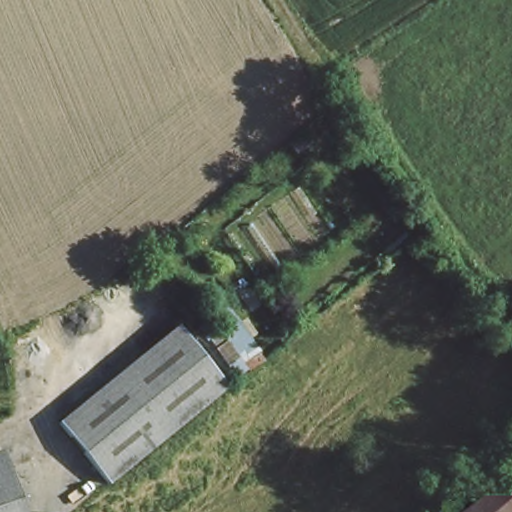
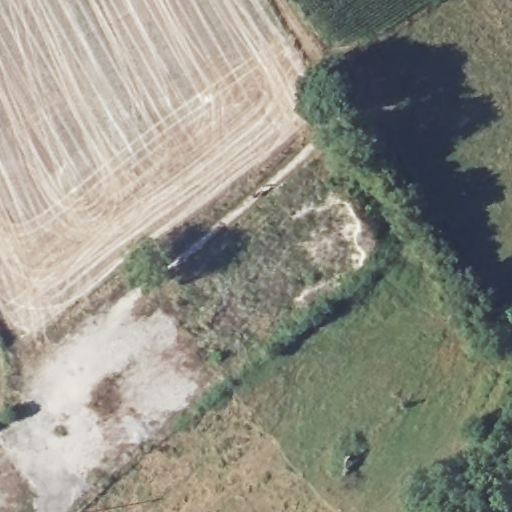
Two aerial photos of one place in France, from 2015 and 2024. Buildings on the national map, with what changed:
demolished [(60,423),(180,327),(222,380),(187,409),(163,428),(103,477),(60,423)]
unchanged [(512,501),(512,512),(498,512),(512,501)]

